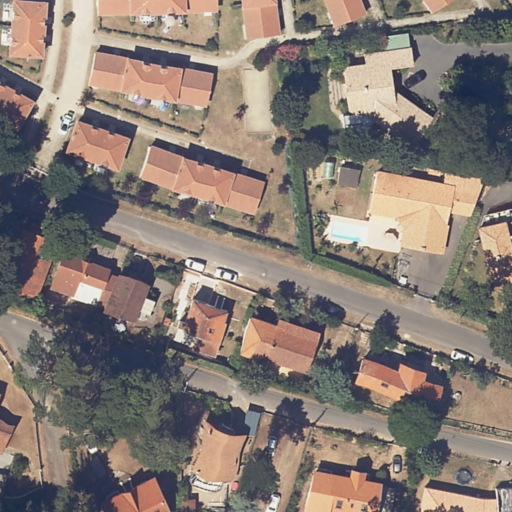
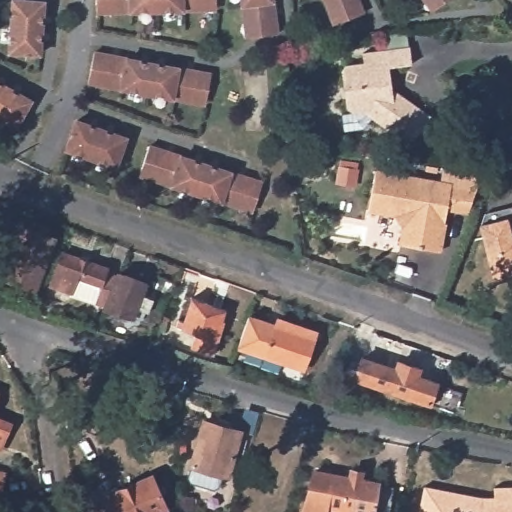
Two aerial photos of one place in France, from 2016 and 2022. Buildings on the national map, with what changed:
unchanged [(6,54),(6,0),(44,0),(44,56),(6,54)]
unchanged [(95,14),(95,0),(217,0),(218,9),(95,14)]
unchanged [(244,35),(240,0),(273,0),(278,34),(244,35)]
unchanged [(333,25),(323,0),(359,0),(364,11),(333,25)]
unchanged [(420,0),(452,0),(432,17),(420,0)]
unchanged [(414,63),(391,66),(394,89),(434,115),(414,144),(365,111),(356,113),(350,109),(344,71),(348,66),(366,63),(364,53),(386,49),(383,35),(401,33),(407,31),(409,46),(411,45),(414,63)]
unchanged [(214,74),(207,105),(86,86),(93,51),(214,74)]
unchanged [(16,131),(0,123),(0,80),(33,104),(16,131)]
unchanged [(129,136),(116,169),(63,154),(74,119),(129,136)]
unchanged [(265,179),(254,212),(140,176),(149,144),(265,179)]
unchanged [(404,242),(407,224),(399,212),(372,208),(378,169),(454,181),(481,185),(473,209),(451,205),(444,249),(404,242)]
unchanged [(501,286),(499,279),(497,280),(483,229),(484,228),(488,217),(512,210),(512,283),(501,286)]
unchanged [(55,240),(34,304),(16,298),(20,286),(3,280),(21,228),(55,240)]
unchanged [(108,308),(98,304),(96,305),(70,296),(71,294),(51,287),(64,254),(108,271),(106,274),(118,279),(108,308)]
unchanged [(108,308),(118,279),(119,275),(145,285),(142,295),(154,299),(149,314),(137,310),(133,322),(105,312),(108,308)]
unchanged [(185,324),(193,300),(226,313),(213,356),(193,349),(197,335),(179,329),(180,323),(185,324)]
unchanged [(239,350),(249,319),(274,328),(278,319),(318,334),(314,342),(304,372),(239,350)]
unchanged [(396,372),(398,364),(420,372),(418,379),(438,386),(430,407),(355,381),(362,360),(396,372)]
unchanged [(242,434),(229,479),(193,468),(205,424),(242,434)]
unchanged [(0,457),(0,426),(10,430),(0,457)]
unchanged [(368,478),(368,479),(383,482),(378,512),(342,512),(344,505),(315,499),(321,469),(368,478)]
unchanged [(0,473),(5,474),(1,494),(0,493),(0,473)]
unchanged [(157,507),(144,512),(100,512),(93,494),(142,473),(157,507)]
unchanged [(496,512),(421,512),(426,484),(496,498),(496,512)]
unchanged [(512,490),(512,512),(496,512),(496,491),(512,490)]

